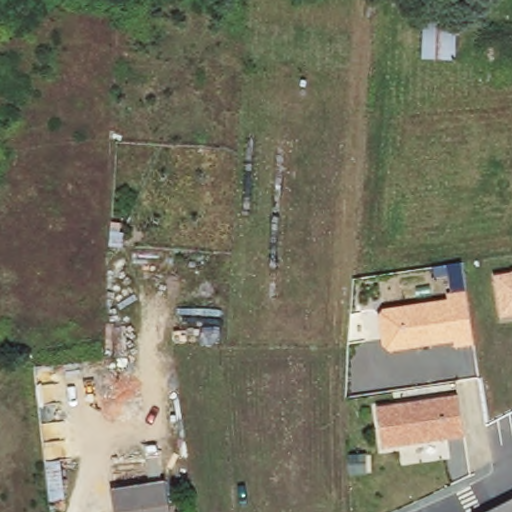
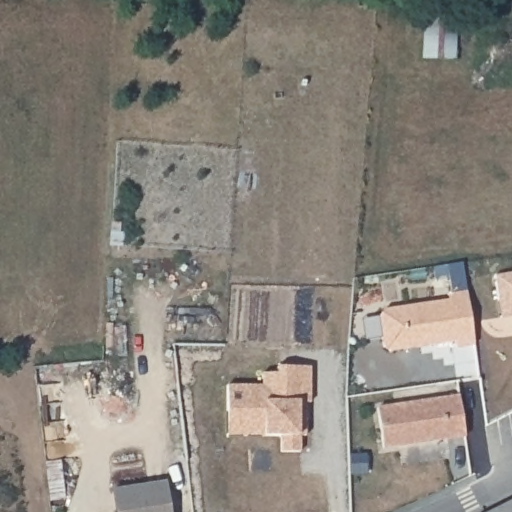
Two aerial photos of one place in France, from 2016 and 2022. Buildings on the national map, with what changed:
unchanged [(494,273),(512,270),(512,317),(500,318),(494,273)]
unchanged [(387,305),(449,299),(448,293),(470,292),(478,343),(382,351),(380,312),(387,305)]
new [(263,385),(263,373),(277,373),(277,366),(310,365),(310,401),(307,401),(308,435),(303,434),(303,450),(284,451),(284,435),(229,436),(228,386),(263,385)]
unchanged [(462,396),(468,436),(382,449),(381,404),(462,396)]
unchanged [(167,480),(171,512),(118,512),(114,488),(167,480)]
unchanged [(512,512),(489,512),(512,501),(512,512)]

